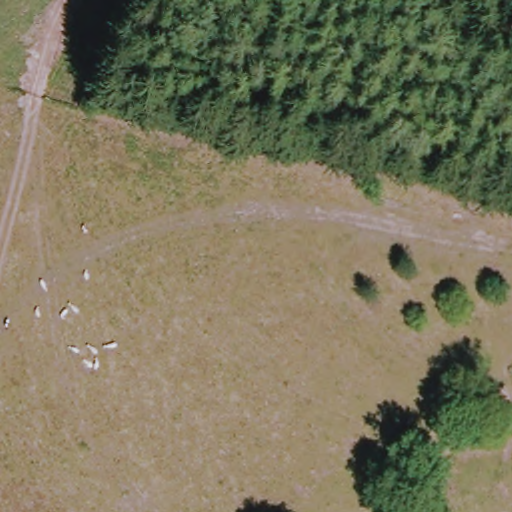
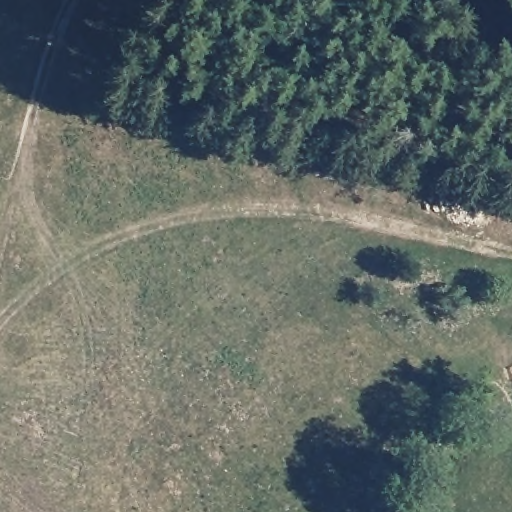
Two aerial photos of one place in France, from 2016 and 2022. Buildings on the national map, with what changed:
[]

